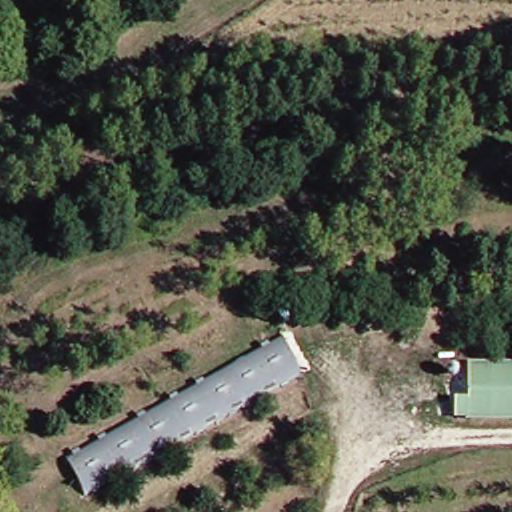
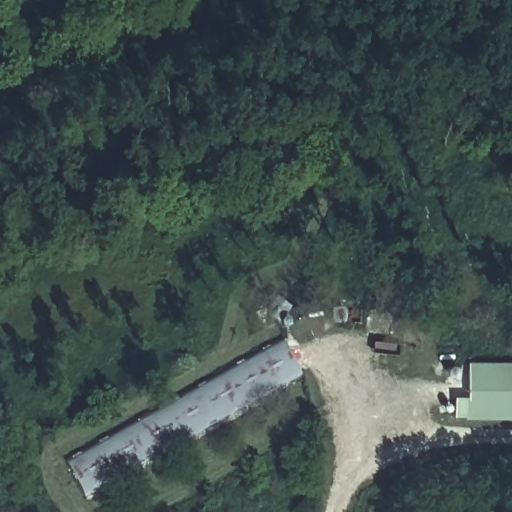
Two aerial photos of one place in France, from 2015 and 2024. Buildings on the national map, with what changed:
unchanged [(285,336),(307,374),(90,497),(68,458),(285,336)]
unchanged [(459,402),(473,402),(473,368),(512,368),(512,417),(459,417),(459,402)]

